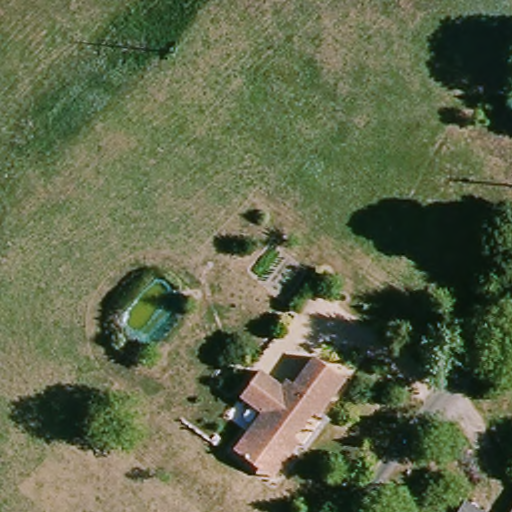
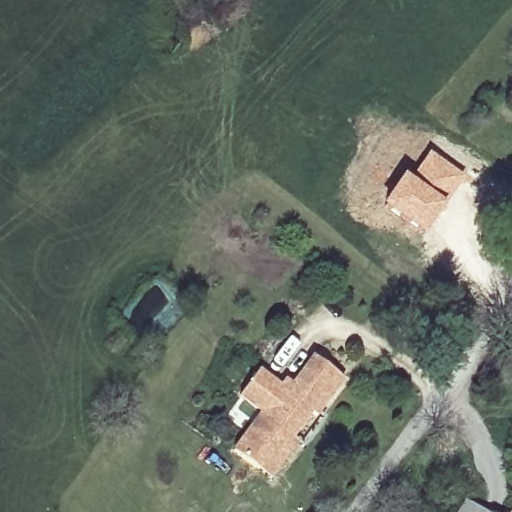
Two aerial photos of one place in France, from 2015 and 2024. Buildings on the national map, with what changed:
new [(402,175),(408,179),(428,152),(464,177),(422,237),(379,206),(402,175)]
unchanged [(262,472),(237,453),(264,416),(243,398),(261,374),(283,390),(289,382),(296,387),(316,360),(346,382),(320,418),(314,416),(294,442),(299,446),(276,482),(262,472)]
unchanged [(479,512),(466,512),(469,506),(479,512)]

